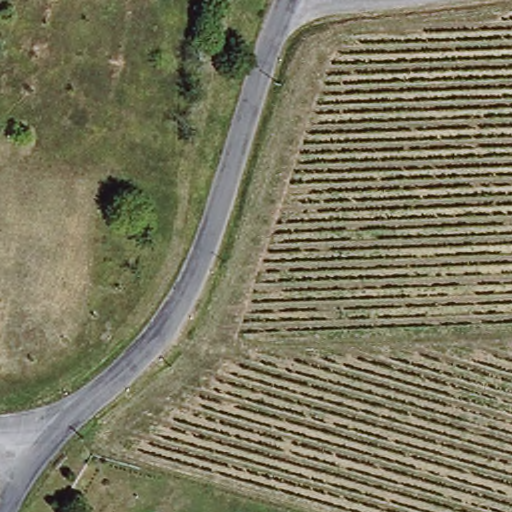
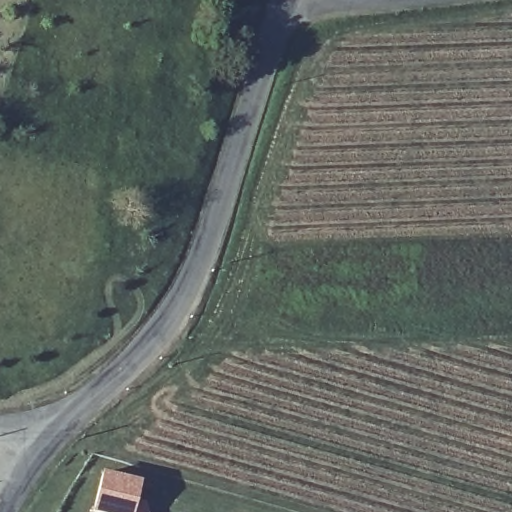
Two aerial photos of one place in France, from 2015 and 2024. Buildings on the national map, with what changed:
new [(139,483),(135,502),(155,507),(157,512),(97,512),(105,476),(139,483)]

